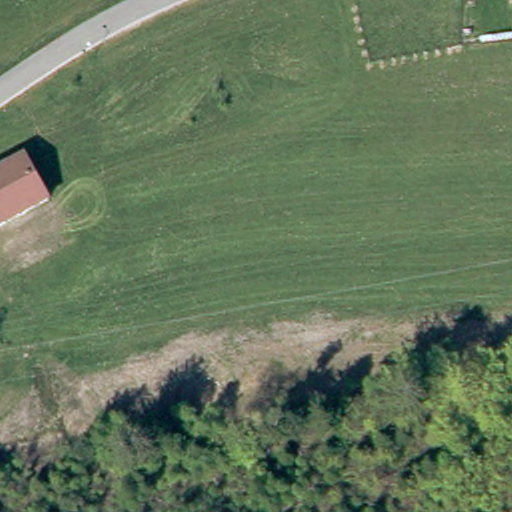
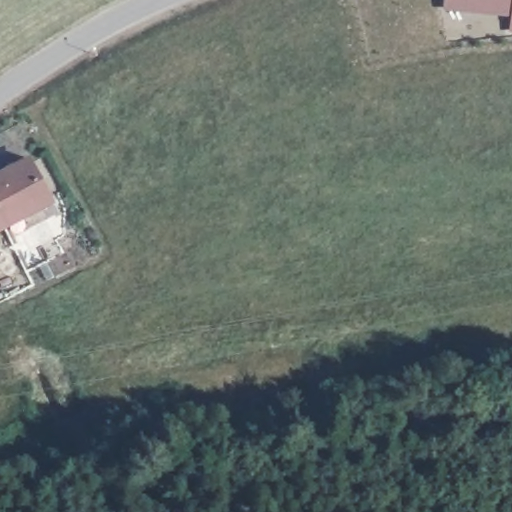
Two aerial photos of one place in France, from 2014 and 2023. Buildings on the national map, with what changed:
new [(442,9),(442,0),(511,0),(510,15),(442,9)]
new [(510,15),(511,0),(512,0),(512,31),(508,31),(510,15)]
unchanged [(48,193),(0,221),(0,157),(20,144),(48,193)]

